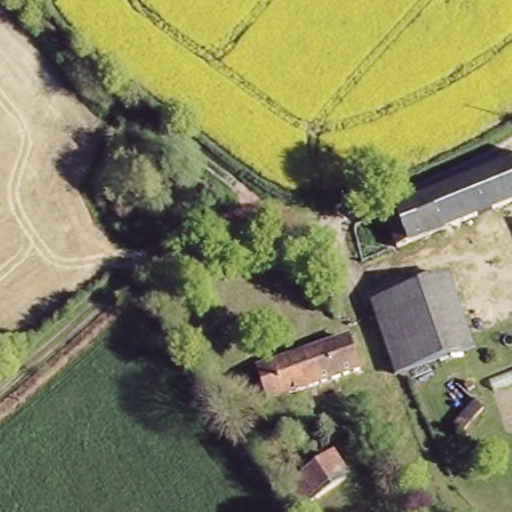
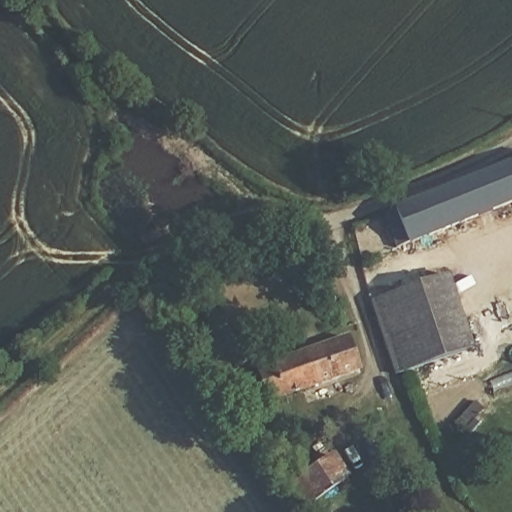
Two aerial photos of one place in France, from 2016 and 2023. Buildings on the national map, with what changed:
unchanged [(512,208),(407,248),(396,220),(395,213),(512,164),(512,208)]
unchanged [(450,276),(472,349),(393,374),(371,301),(450,276)]
unchanged [(270,396),(256,346),(339,323),(355,375),(270,396)]
unchanged [(337,448),(357,476),(313,512),(305,512),(285,486),(337,448)]

